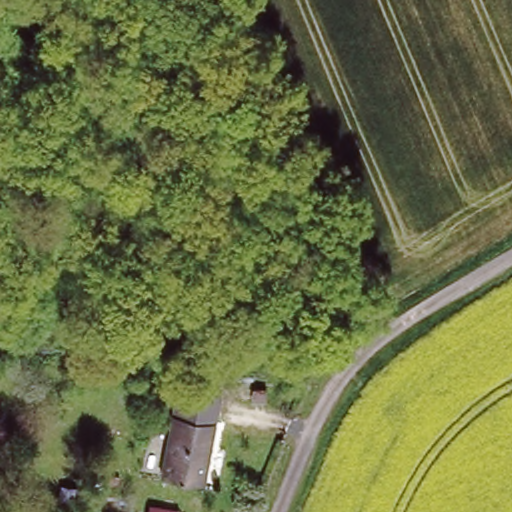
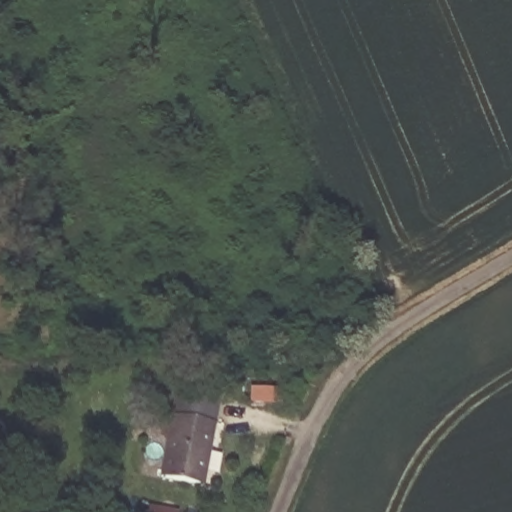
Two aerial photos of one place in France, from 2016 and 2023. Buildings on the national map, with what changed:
unchanged [(180,383),(220,391),(213,424),(173,415),(180,383)]
unchanged [(173,415),(213,424),(199,487),(160,478),(173,415)]

